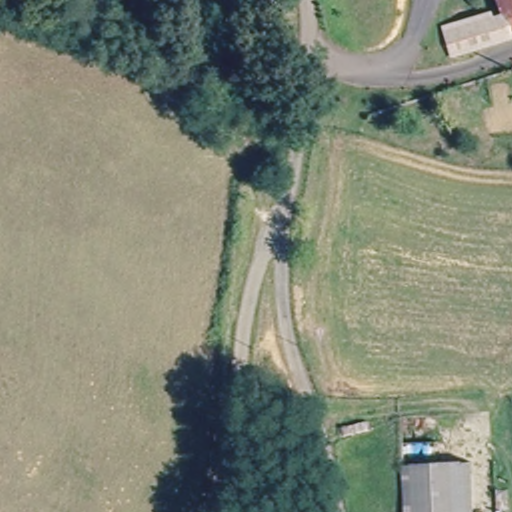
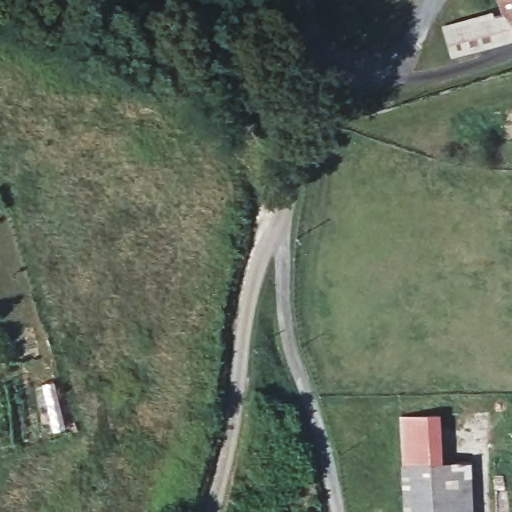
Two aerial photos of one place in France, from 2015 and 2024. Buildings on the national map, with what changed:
unchanged [(506,15),(502,17),(496,0),(512,0),(512,13),(506,15)]
unchanged [(453,61),(446,44),(441,33),(490,15),(493,21),(502,17),(506,15),(512,34),(512,35),(453,61)]
new [(399,416),(439,414),(442,462),(400,465),(399,416)]
unchanged [(461,461),(463,512),(401,512),(400,465),(461,461)]

